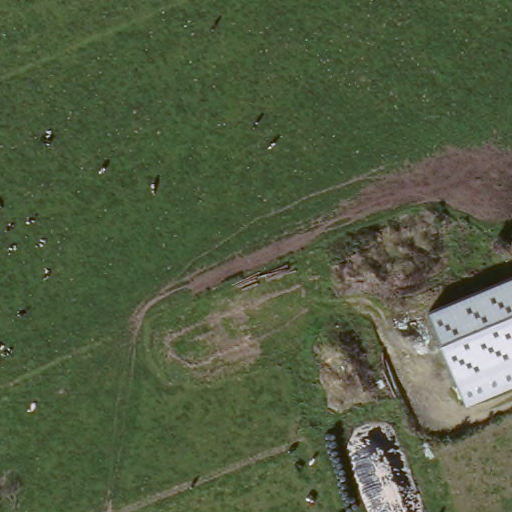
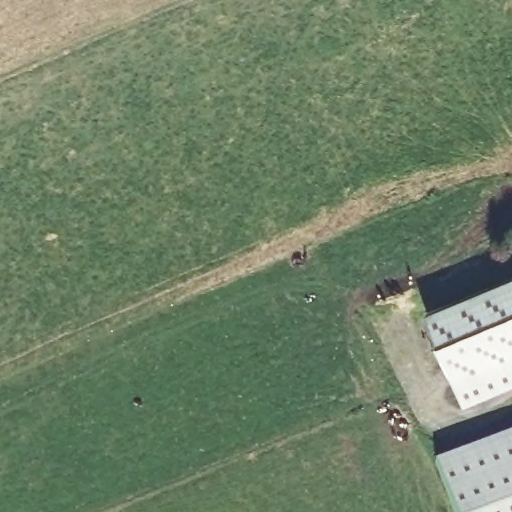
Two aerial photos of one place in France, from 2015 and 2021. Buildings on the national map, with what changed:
unchanged [(512,383),(467,403),(431,313),(512,282),(512,383)]
new [(512,512),(453,512),(437,470),(512,441),(512,512)]

